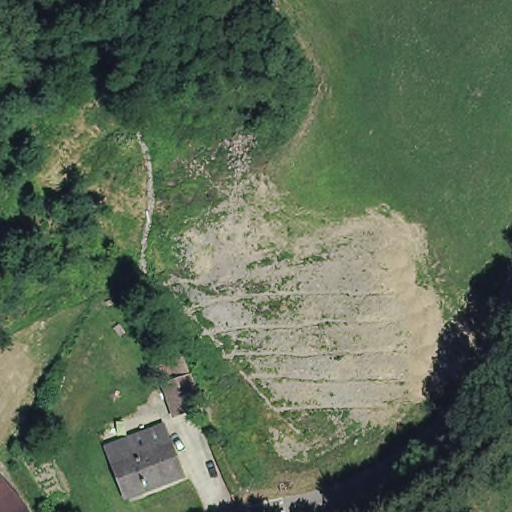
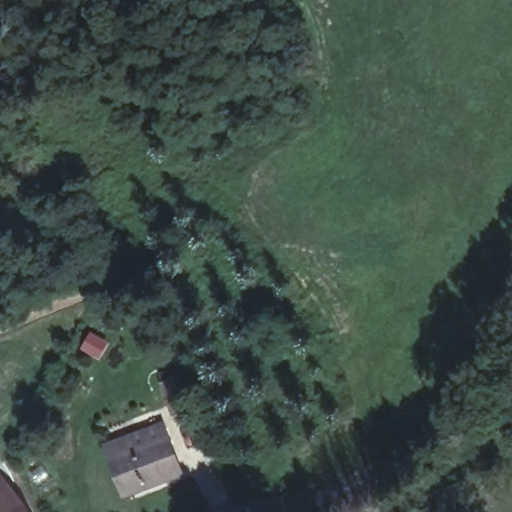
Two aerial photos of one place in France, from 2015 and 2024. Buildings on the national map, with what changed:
unchanged [(138,302),(148,297),(157,319),(147,323),(138,302)]
unchanged [(171,347),(181,374),(163,382),(152,355),(171,347)]
unchanged [(184,377),(196,405),(172,415),(160,387),(184,377)]
unchanged [(160,420),(177,468),(122,487),(105,439),(160,420)]
unchanged [(11,491),(26,506),(30,512),(0,512),(0,480),(11,491)]

